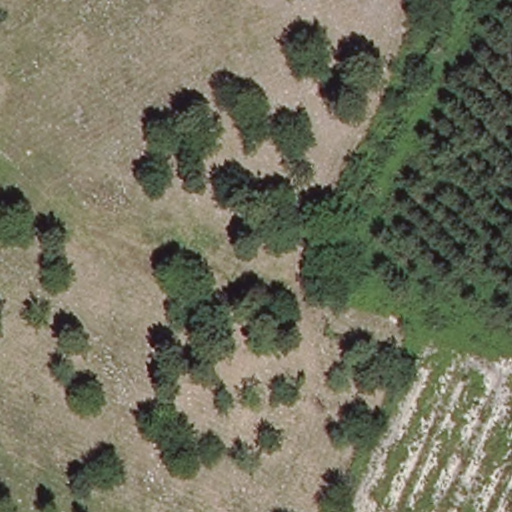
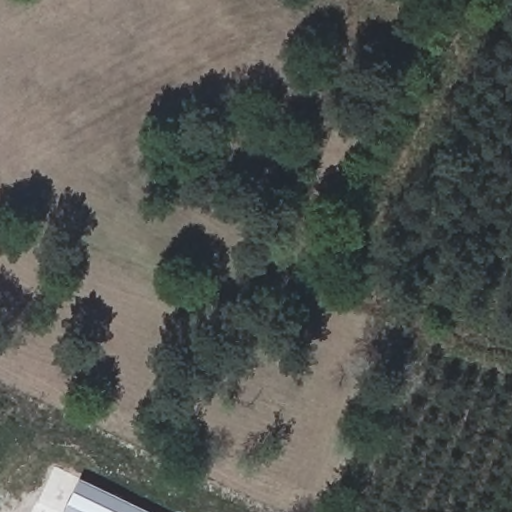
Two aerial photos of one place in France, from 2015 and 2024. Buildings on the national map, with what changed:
new [(151,512),(64,512),(82,479),(151,512)]

